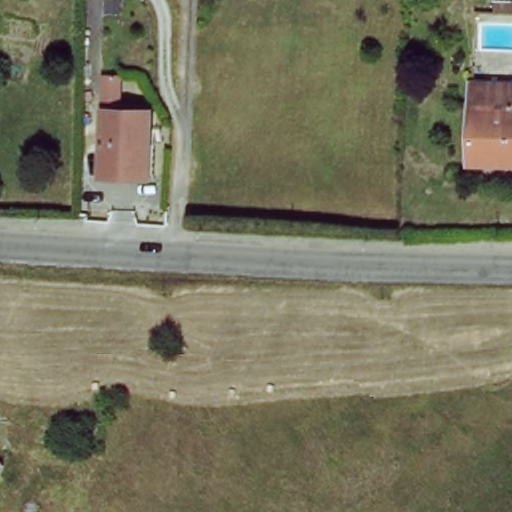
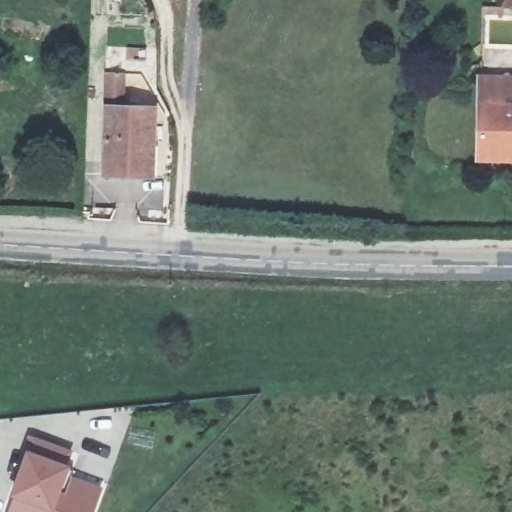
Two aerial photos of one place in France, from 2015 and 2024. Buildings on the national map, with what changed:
unchanged [(512,87),(512,108),(476,107),(477,86),(512,87)]
unchanged [(475,162),(476,107),(512,108),(512,163),(475,162)]
unchanged [(154,179),(144,179),(106,178),(108,112),(154,114),(153,150),(156,150),(154,179)]
new [(72,451),(67,464),(71,465),(66,477),(103,488),(94,512),(8,512),(13,497),(9,496),(25,451),(22,450),(27,434),(72,451)]

